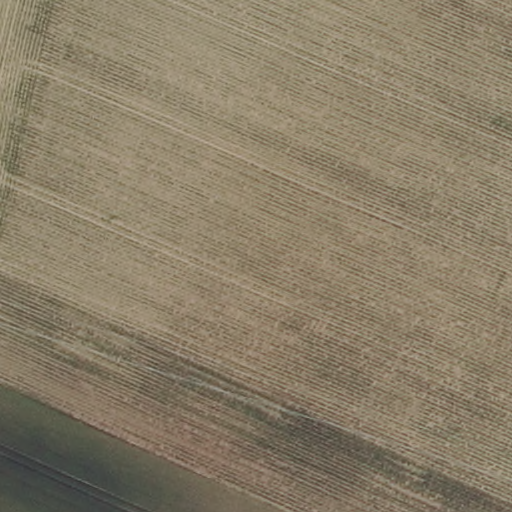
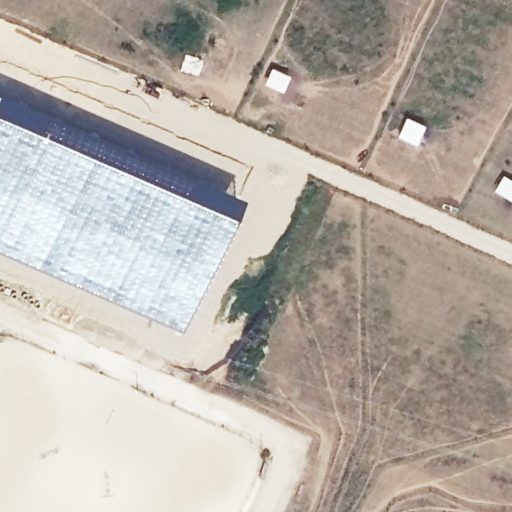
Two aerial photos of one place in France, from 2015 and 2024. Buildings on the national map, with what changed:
new [(237,200),(178,331),(45,272),(0,253),(0,97),(237,200)]

